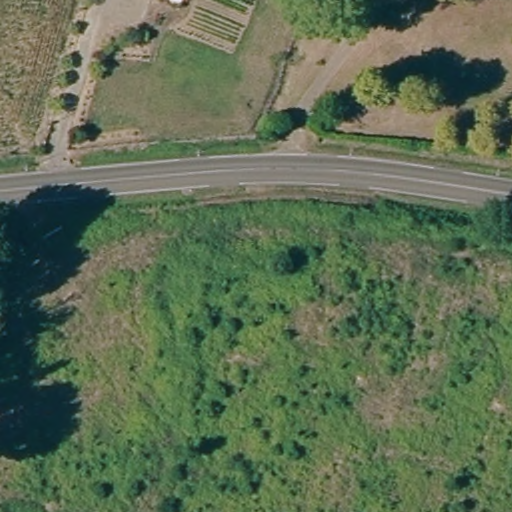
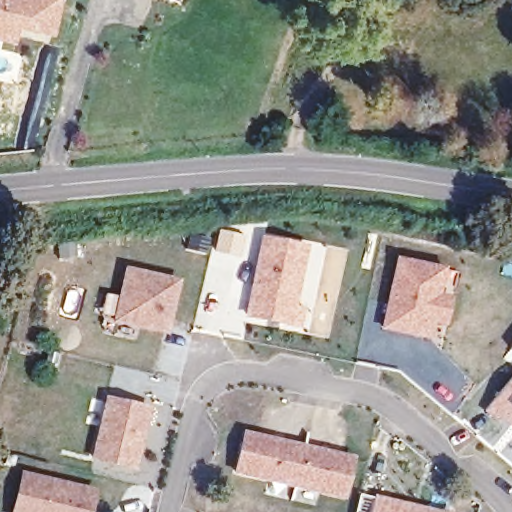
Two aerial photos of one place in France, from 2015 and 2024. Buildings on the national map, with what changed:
new [(18,26),(16,42),(0,38),(0,0),(62,0),(53,34),(18,26)]
new [(244,317),(259,235),(308,246),(296,307),(304,307),(300,328),(244,317)]
new [(382,330),(394,258),(445,268),(440,296),(450,297),(444,326),(432,323),(430,340),(382,330)]
new [(113,322),(125,267),(180,280),(169,335),(113,322)]
new [(496,421),(485,411),(512,377),(512,426),(500,417),(496,421)]
new [(89,460),(104,397),(152,407),(136,470),(89,460)]
new [(242,435),(301,448),(292,486),(233,472),(242,435)]
new [(301,448),(350,460),(341,497),(292,486),(301,448)]
new [(97,488),(92,512),(11,512),(20,469),(97,488)]
new [(445,512),(371,512),(374,496),(445,512)]

